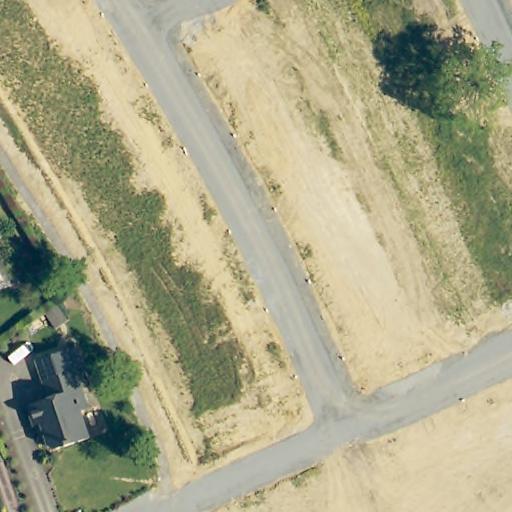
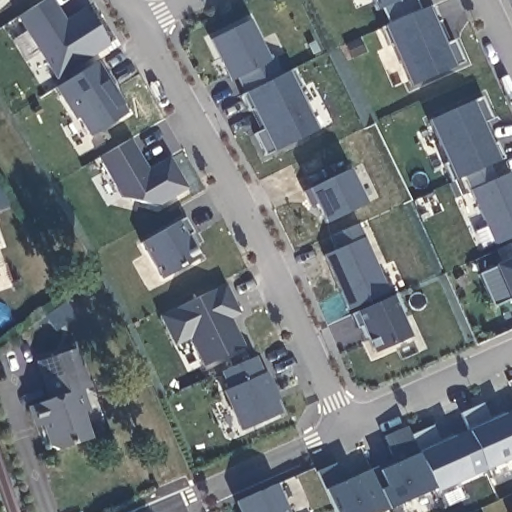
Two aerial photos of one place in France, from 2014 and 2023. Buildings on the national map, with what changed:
new [(86,6),(112,43),(59,77),(20,16),(47,0),(56,0),(67,18),(86,6)]
new [(455,66),(413,84),(387,24),(430,5),(448,43),(456,39),(465,60),(455,66)]
new [(276,151),(267,155),(256,135),(265,129),(257,111),(252,113),(242,94),(247,91),(242,77),(233,82),(212,38),(254,17),(273,60),(279,58),(286,72),(294,68),(304,87),(299,89),(319,128),(276,151)]
new [(94,134),(83,117),(80,119),(58,85),(63,82),(59,77),(95,54),(131,111),(94,134)]
new [(491,164),(465,175),(456,181),(433,120),(474,101),(484,97),(494,119),(485,122),(494,144),(498,141),(505,159),(491,164)]
new [(162,206),(126,197),(101,156),(133,136),(152,167),(172,156),(191,188),(162,206)]
new [(465,175),(491,164),(498,175),(511,169),(512,172),(512,238),(497,246),(465,175)]
new [(325,222),(310,190),(348,169),(365,203),(325,222)]
new [(203,246),(199,248),(203,256),(163,279),(142,240),(188,215),(196,230),(203,246)]
new [(376,353),(355,310),(350,312),(326,252),(336,247),(331,235),(360,222),(412,336),(376,353)]
new [(495,304),(481,273),(497,264),(512,258),(512,304),(509,298),(495,304)]
new [(244,314),(234,319),(246,345),(208,365),(195,337),(179,344),(164,314),(227,283),(244,314)]
unchanged [(78,347),(89,387),(83,388),(89,410),(83,411),(91,439),(63,447),(50,444),(44,423),(35,426),(28,404),(51,397),(39,358),(78,347)]
new [(264,373),(283,414),(243,431),(225,390),(231,386),(222,370),(257,357),(264,373)]
new [(492,415),(512,407),(512,452),(487,463),(462,408),(484,398),(492,415)]
new [(434,421),(442,438),(470,426),(487,463),(435,489),(420,452),(412,431),(434,421)]
new [(390,510),(380,489),(371,467),(378,464),(381,470),(420,452),(435,489),(390,510)]
new [(385,512),(337,512),(327,490),(318,473),(338,464),(345,480),(355,475),(371,467),(380,489),(382,492),(390,510),(385,512)]
new [(290,512),(239,512),(234,503),(277,484),(290,512)]

